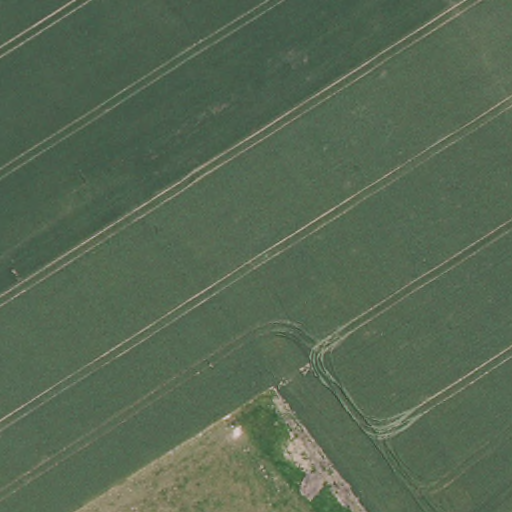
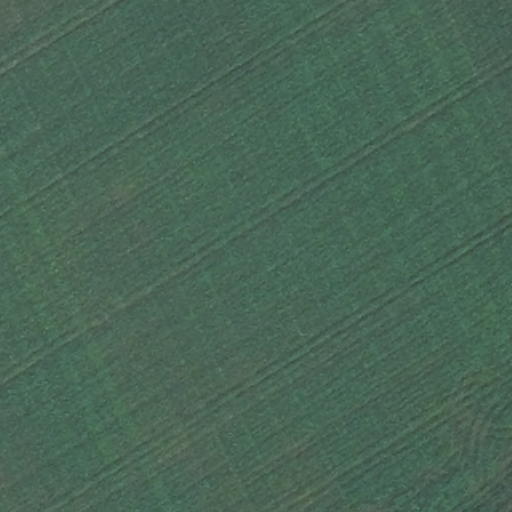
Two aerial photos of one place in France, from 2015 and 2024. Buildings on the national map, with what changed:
[]

